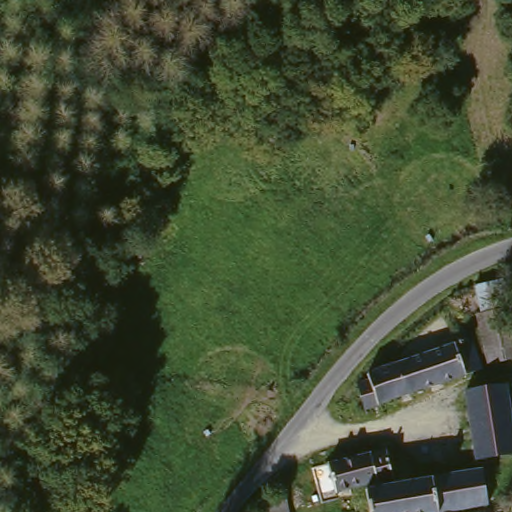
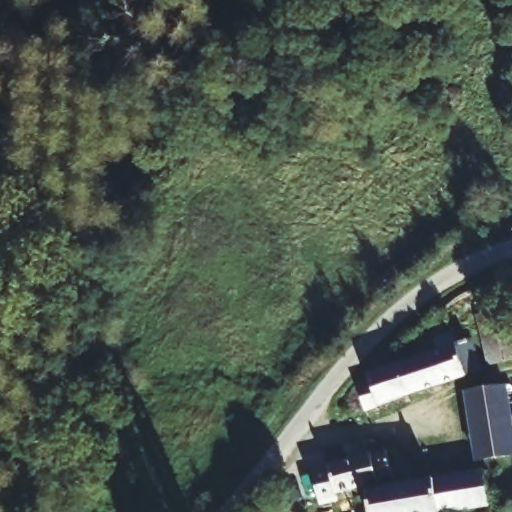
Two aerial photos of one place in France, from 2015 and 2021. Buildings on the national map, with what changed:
unchanged [(473,315),(478,314),(472,286),(499,280),(512,340),(512,358),(486,365),(473,315)]
unchanged [(447,330),(463,325),(467,336),(479,369),(362,409),(354,385),(364,381),(363,374),(376,369),(392,363),(451,342),(447,330)]
unchanged [(478,463),(467,392),(490,388),(507,384),(512,420),(512,456),(478,463)]
unchanged [(315,468),(329,464),(358,456),(387,449),(394,479),(359,487),(338,494),(325,498),(315,468)]
unchanged [(490,506),(452,512),(371,512),(367,489),(478,470),(482,469),(491,506),(490,506)]
unchanged [(287,497),(291,512),(270,512),(268,501),(268,500),(287,497)]

